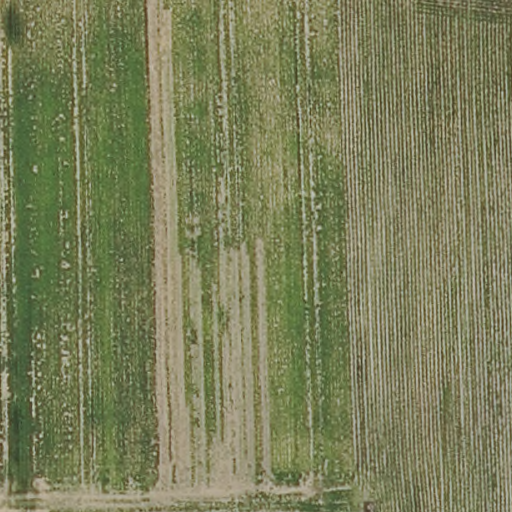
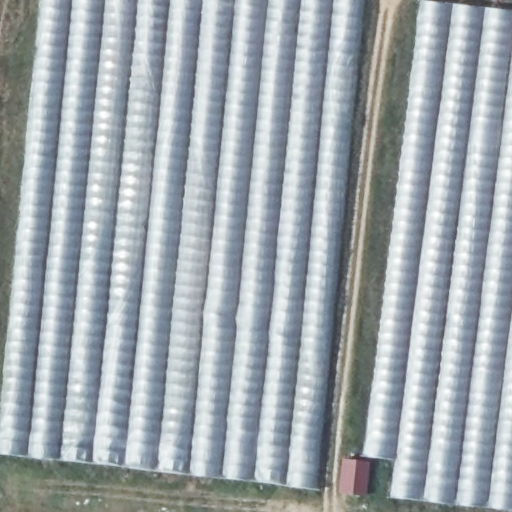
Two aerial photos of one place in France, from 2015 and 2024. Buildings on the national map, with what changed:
new [(361,512),(0,469),(0,354),(39,0),(389,0),(512,15),(512,512),(361,512)]

